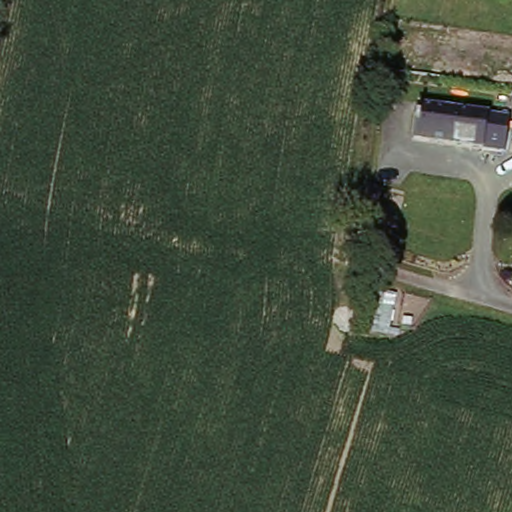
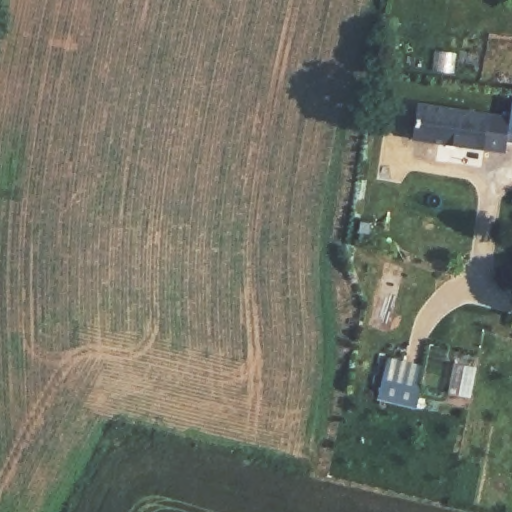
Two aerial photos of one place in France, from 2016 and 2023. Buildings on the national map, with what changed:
unchanged [(506,154),(485,151),(415,141),(420,106),(491,115),(512,118),(512,121),(506,154)]
new [(512,121),(512,142),(508,142),(512,121)]
new [(418,385),(422,386),(416,410),(378,400),(388,357),(422,366),(418,385)]

